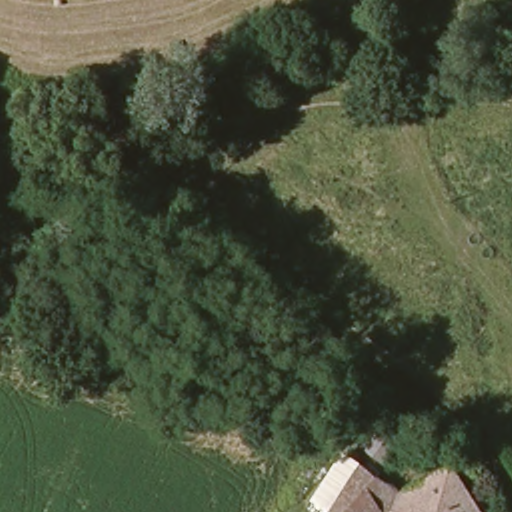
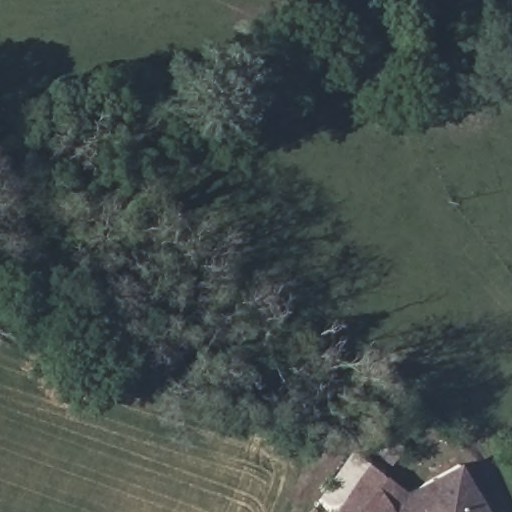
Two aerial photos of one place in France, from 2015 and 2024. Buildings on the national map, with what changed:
unchanged [(409,489),(459,461),(489,512),(335,512),(370,463),(409,489)]

